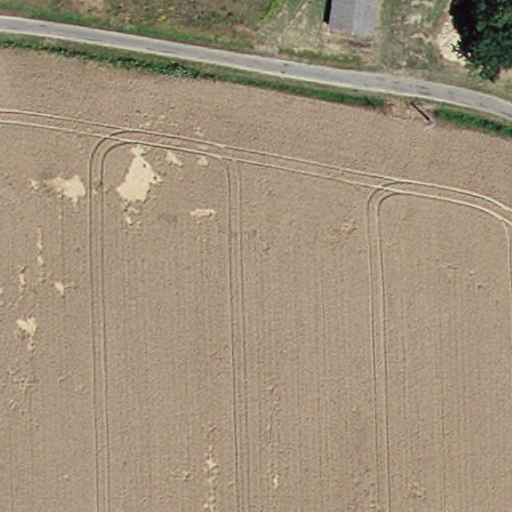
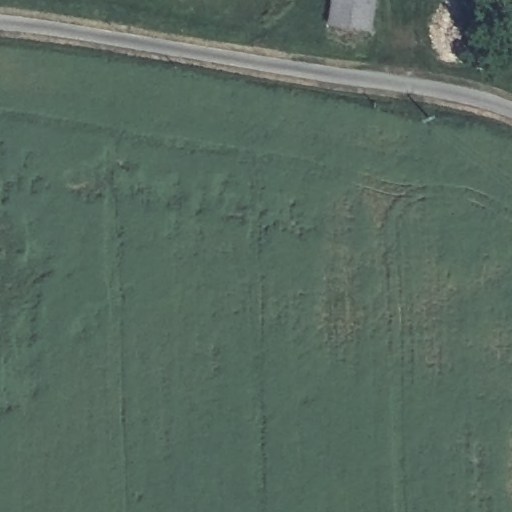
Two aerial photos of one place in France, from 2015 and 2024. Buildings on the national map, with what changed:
unchanged [(317,24),(323,0),(365,0),(358,32),(317,24)]

